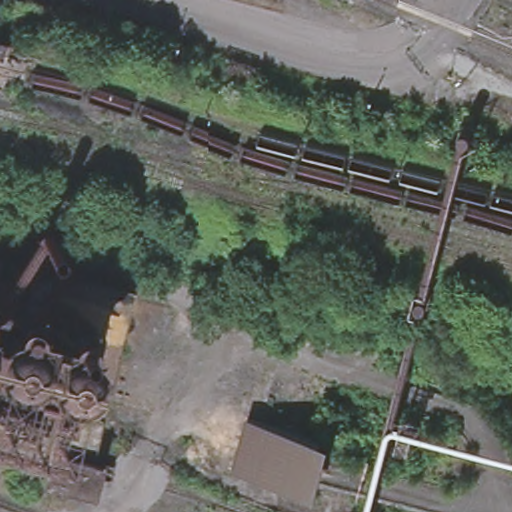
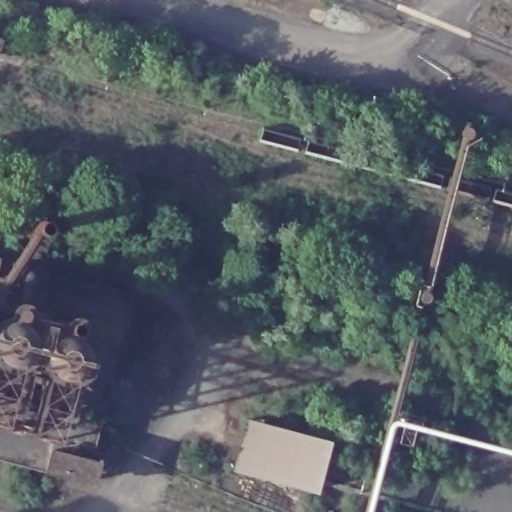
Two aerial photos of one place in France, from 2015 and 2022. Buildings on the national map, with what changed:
unchanged [(1,41),(0,46),(0,41),(1,41)]
unchanged [(10,86),(6,98),(0,96),(0,83),(10,86)]
unchanged [(83,492),(82,496),(0,474),(0,271),(131,305),(83,492)]
unchanged [(246,420),(329,436),(316,494),(234,472),(246,420)]

